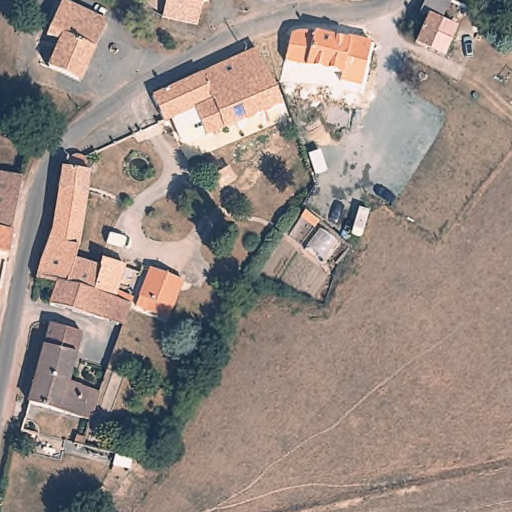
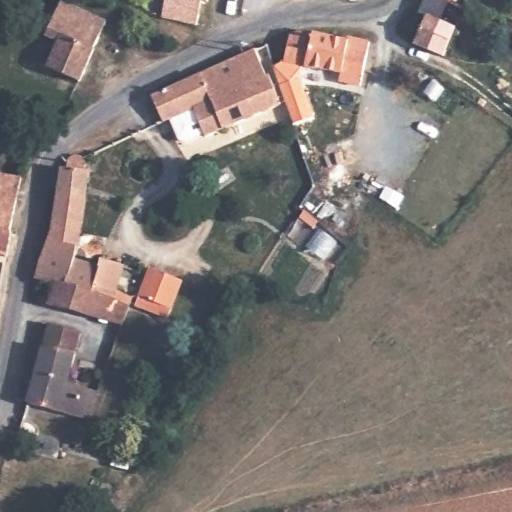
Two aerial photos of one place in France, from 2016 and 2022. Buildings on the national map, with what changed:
unchanged [(214,0),(213,5),(186,0),(214,0)]
unchanged [(344,0),(359,0),(358,4),(344,0)]
unchanged [(426,24),(419,20),(429,0),(436,0),(452,8),(428,55),(415,48),(426,24)]
unchanged [(428,55),(452,8),(467,15),(470,12),(480,17),(475,28),(465,22),(445,62),(428,55)]
unchanged [(63,44),(61,48),(50,44),(65,10),(111,30),(97,59),(63,44)]
unchanged [(195,32),(181,29),(186,14),(199,17),(195,32)]
unchanged [(370,60),(368,71),(347,67),(344,77),(287,65),(292,40),(303,36),(347,50),(348,45),(383,51),(381,61),(370,60)]
unchanged [(83,90),(50,75),(61,48),(63,44),(97,59),(83,90)]
unchanged [(205,145),(192,112),(159,125),(149,99),(255,54),(278,115),(205,145)]
unchanged [(362,129),(372,110),(390,120),(378,138),(362,129)]
unchanged [(86,321),(34,307),(32,307),(38,283),(52,247),(56,234),(65,172),(71,173),(72,167),(72,164),(76,162),(79,162),(82,162),(85,164),(87,167),(86,176),(91,176),(86,239),(77,266),(102,275),(106,266),(128,272),(117,307),(117,310),(127,317),(124,332),(88,321),(86,321)]
unchanged [(0,256),(0,172),(29,178),(12,258),(0,256)]
unchanged [(137,311),(142,301),(152,273),(186,286),(175,315),(171,324),(137,311)]
unchanged [(4,293),(0,310),(0,293),(4,293)]
unchanged [(36,381),(50,331),(81,339),(69,390),(36,381)]
unchanged [(29,408),(36,381),(69,390),(100,397),(92,425),(29,408)]
unchanged [(63,451),(65,445),(76,447),(75,454),(63,451)]

